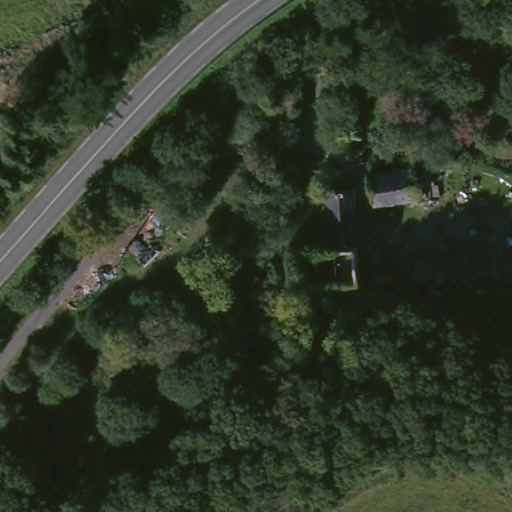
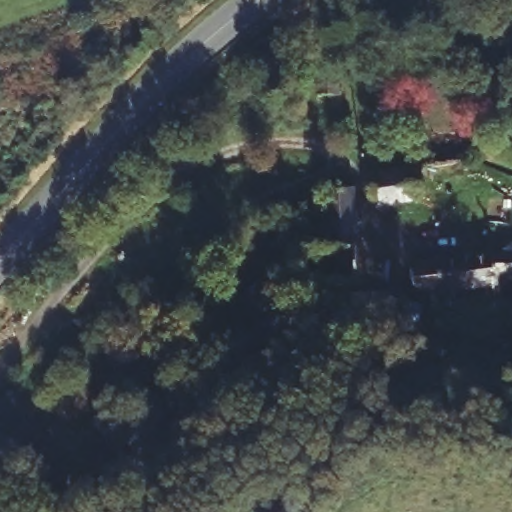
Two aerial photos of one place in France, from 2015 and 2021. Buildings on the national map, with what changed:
unchanged [(318,96),(318,67),(341,66),(342,95),(318,96)]
unchanged [(425,171),(428,200),(415,201),(416,205),(374,208),(365,208),(362,178),(411,172),(425,171)]
unchanged [(348,243),(330,243),(326,191),(355,188),(356,243),(348,243)]
unchanged [(418,293),(405,294),(405,268),(465,261),(512,259),(512,289),(479,289),(423,297),(418,293)]

